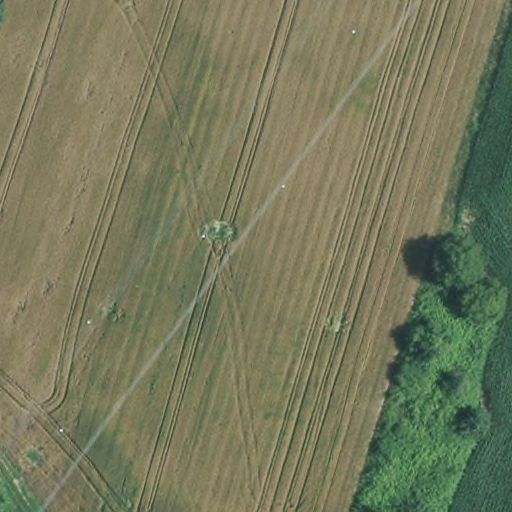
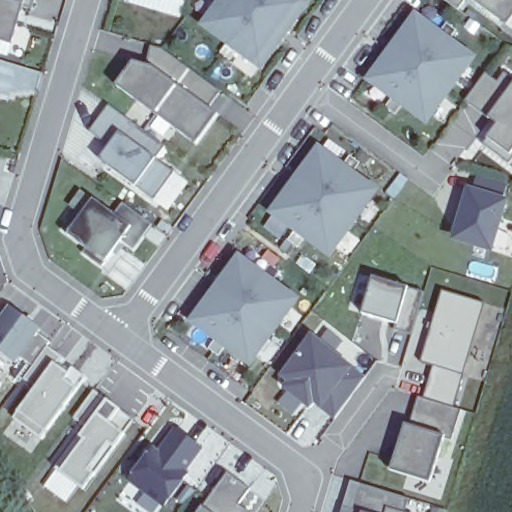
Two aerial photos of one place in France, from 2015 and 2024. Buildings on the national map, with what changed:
new [(22,4),(12,40),(0,37),(0,0),(34,0),(32,7),(22,4)]
new [(181,6),(165,1),(164,5),(146,0),(183,0),(181,6)]
new [(225,0),(299,0),(309,7),(262,70),(205,28),(225,0)]
new [(504,27),(468,1),(459,13),(441,0),(512,0),(512,4),(512,15),(504,27)]
new [(417,20),(474,62),(427,125),(370,83),(417,20)]
new [(197,145),(117,86),(134,63),(147,66),(152,46),(162,49),(221,93),(210,110),(219,116),(197,145)]
new [(497,82),(502,77),(512,85),(512,156),(505,164),(479,145),(494,127),(462,104),(487,74),(497,82)]
new [(154,201),(134,188),(99,161),(109,146),(90,131),(110,105),(165,147),(156,159),(175,172),(154,201)]
new [(320,152),(377,194),(330,258),(273,216),(320,152)]
new [(507,187),(502,204),(506,205),(491,253),(455,242),(460,227),(462,228),(467,211),(465,210),(470,194),(474,196),(479,178),(507,187)]
new [(82,217),(77,213),(75,214),(69,210),(81,193),(94,202),(82,217)]
new [(123,206),(152,228),(134,253),(122,244),(102,271),(83,257),(87,252),(62,233),(77,213),(82,217),(94,202),(115,218),(123,206)]
new [(240,261),(297,303),(250,367),(193,325),(240,261)]
new [(412,334),(397,329),(397,323),(362,314),(372,278),(406,288),(423,293),(412,334)]
new [(454,408),(422,399),(432,366),(420,363),(442,291),(485,304),(454,408)]
new [(42,329),(39,333),(52,341),(47,348),(32,367),(20,358),(15,365),(0,354),(0,319),(9,306),(42,329)]
new [(335,418),(282,376),(313,337),(365,380),(335,418)]
new [(41,438),(15,419),(37,388),(24,379),(32,367),(47,348),(62,358),(56,366),(67,374),(72,369),(85,379),(41,438)]
new [(79,488),(58,473),(88,431),(75,422),(95,395),(120,413),(134,424),(124,437),(94,479),(84,492),(79,488)]
new [(452,440),(445,438),(431,484),(390,472),(405,425),(410,426),(418,398),(422,399),(454,408),(462,410),(452,440)]
new [(165,509),(127,482),(152,445),(159,450),(175,428),(203,449),(187,471),(190,473),(165,509)]
new [(250,492),(236,512),(201,512),(227,475),(250,492)]
new [(409,499),(405,512),(341,512),(350,482),(409,499)]

